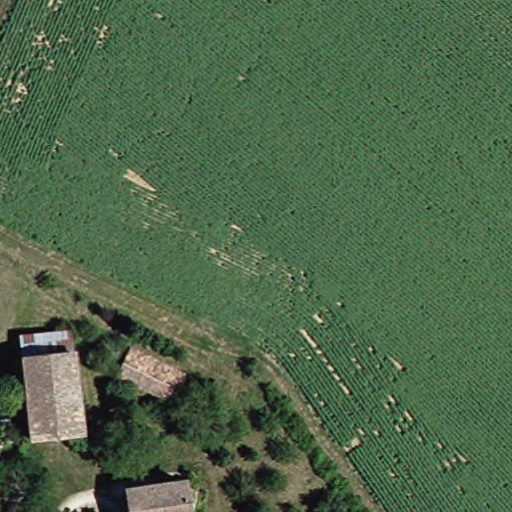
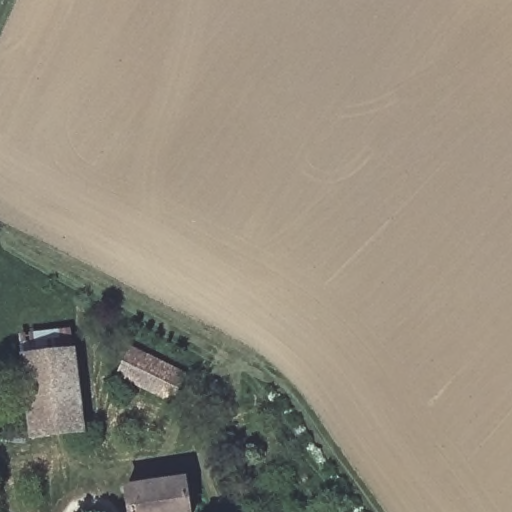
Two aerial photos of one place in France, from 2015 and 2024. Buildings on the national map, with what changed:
unchanged [(79,425),(36,430),(25,353),(65,346),(79,425)]
unchanged [(174,403),(120,376),(131,352),(185,380),(174,403)]
unchanged [(180,477),(188,512),(136,512),(131,485),(180,477)]

